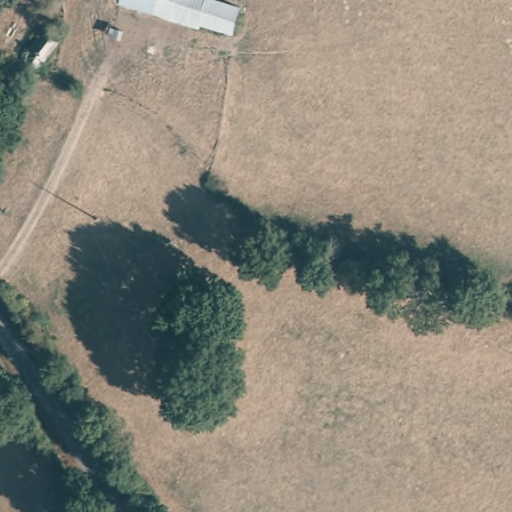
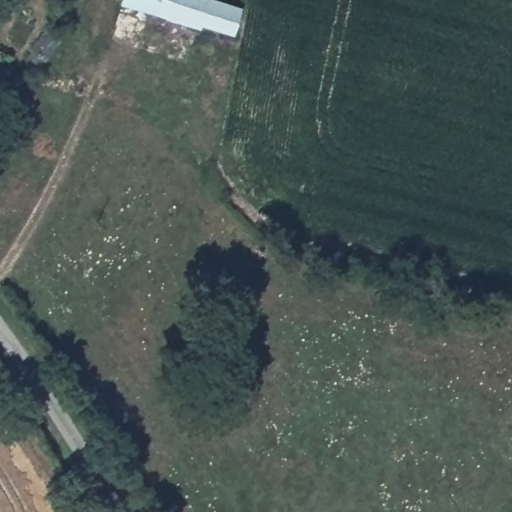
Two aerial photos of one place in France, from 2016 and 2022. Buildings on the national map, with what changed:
unchanged [(200,31),(120,5),(122,0),(211,0),(243,11),(236,37),(202,27),(200,31)]

